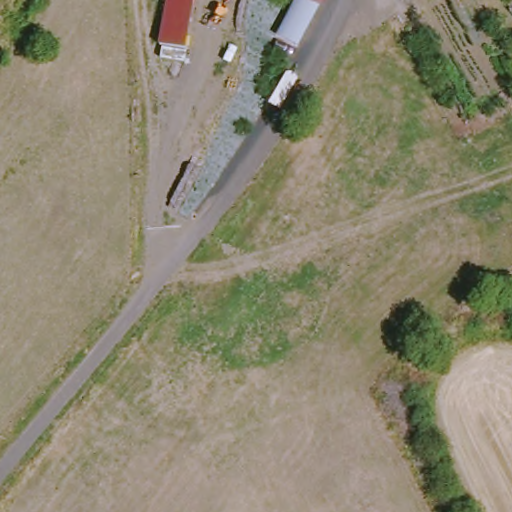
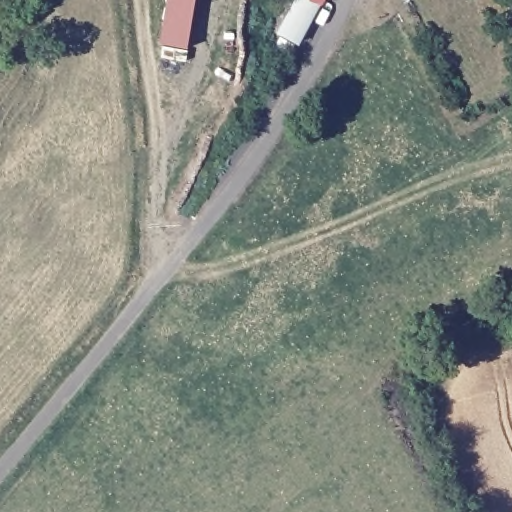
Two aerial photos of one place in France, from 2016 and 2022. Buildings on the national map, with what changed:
unchanged [(187,65),(162,60),(164,46),(159,45),(167,0),(196,0),(187,50),(187,65)]
unchanged [(304,47),(283,37),(298,0),(330,0),(327,9),(304,47)]

